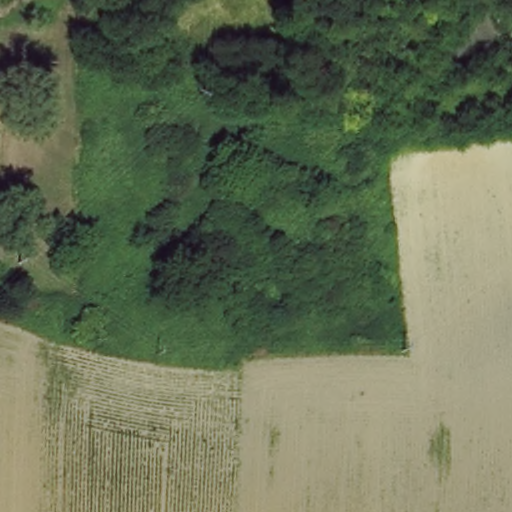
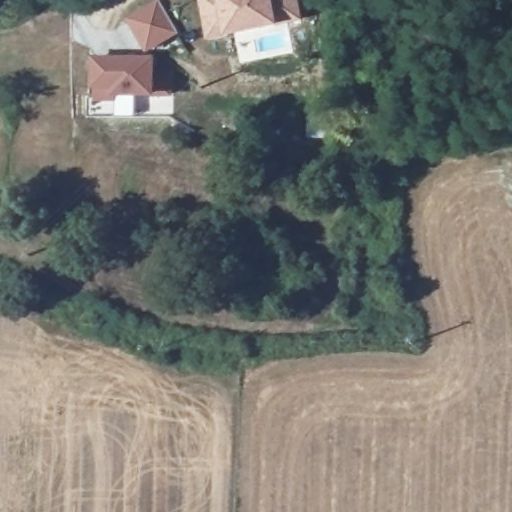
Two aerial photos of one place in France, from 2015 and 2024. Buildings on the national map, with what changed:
new [(158,0),(179,37),(148,56),(125,21),(158,0)]
new [(303,22),(279,27),(225,39),(208,42),(198,0),(298,0),(303,22)]
new [(155,57),(155,74),(173,75),(172,99),(155,99),(114,99),(116,104),(95,104),(92,92),(91,59),(155,57)]

